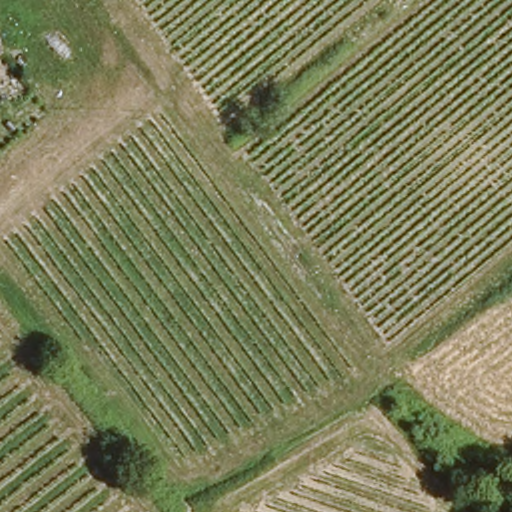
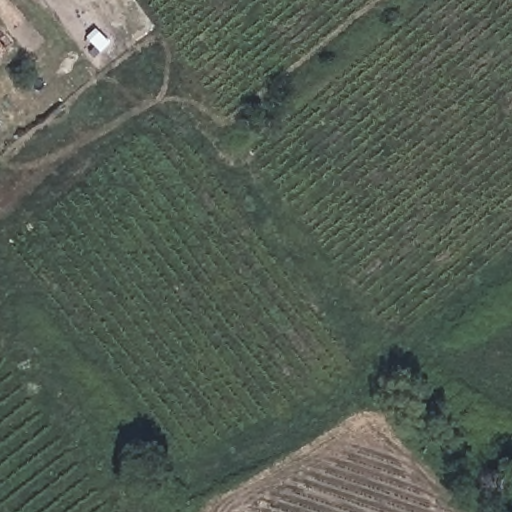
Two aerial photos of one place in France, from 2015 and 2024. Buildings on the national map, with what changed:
unchanged [(0,56),(0,45),(5,52),(0,56)]

